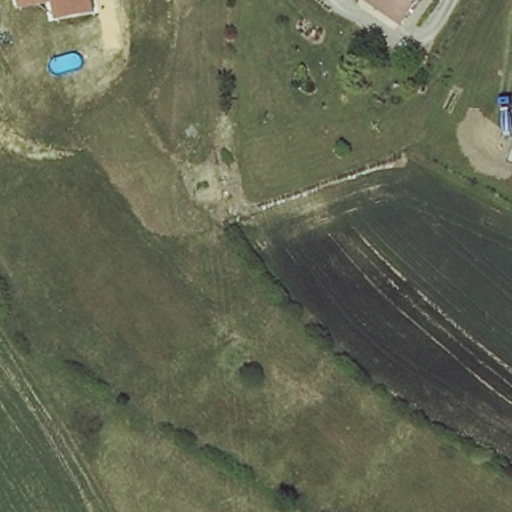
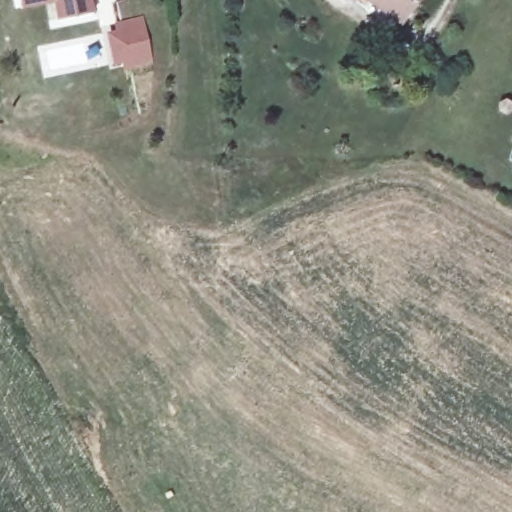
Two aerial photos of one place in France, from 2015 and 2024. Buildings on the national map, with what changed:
unchanged [(92,0),(94,12),(55,20),(53,4),(21,8),(19,0),(92,0)]
unchanged [(364,0),(369,0),(368,2),(364,0)]
unchanged [(372,0),(432,0),(411,29),(372,0)]
new [(106,32),(119,30),(117,22),(143,17),(153,65),(127,70),(125,63),(113,65),(106,32)]

